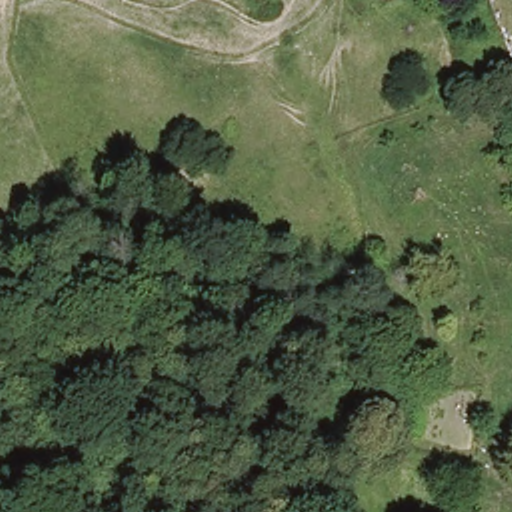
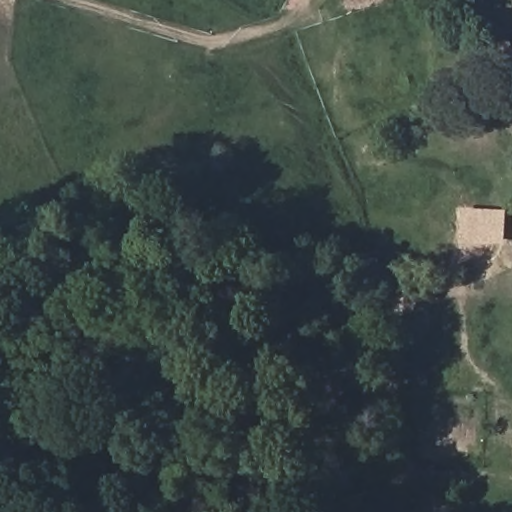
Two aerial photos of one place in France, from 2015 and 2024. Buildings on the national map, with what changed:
new [(462,209),(506,211),(505,245),(461,243),(462,209)]

